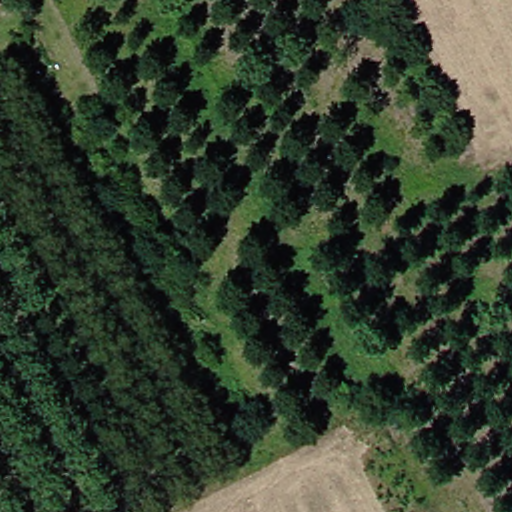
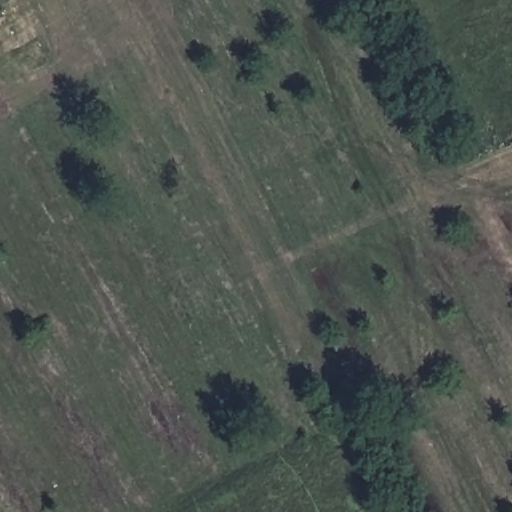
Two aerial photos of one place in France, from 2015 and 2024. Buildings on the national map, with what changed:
unchanged [(0,12),(0,0),(1,0),(6,9),(0,12)]

